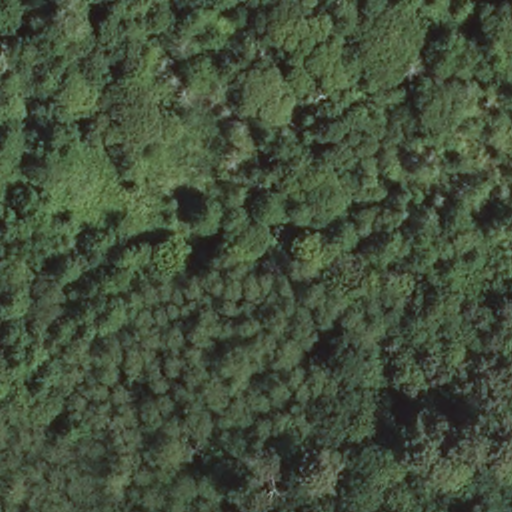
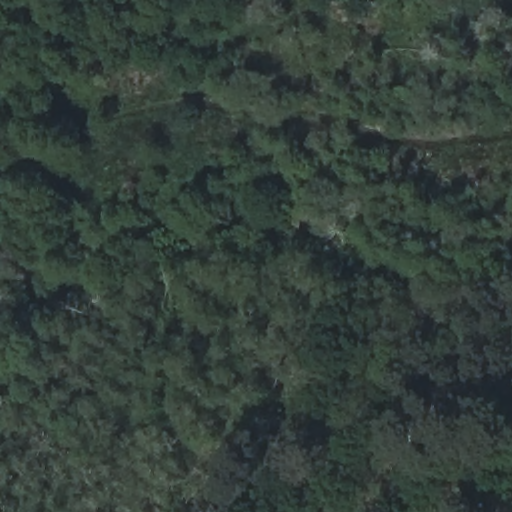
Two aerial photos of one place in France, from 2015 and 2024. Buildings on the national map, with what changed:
unchanged [(282,383),(271,384),(271,367),(281,367),(282,383)]

